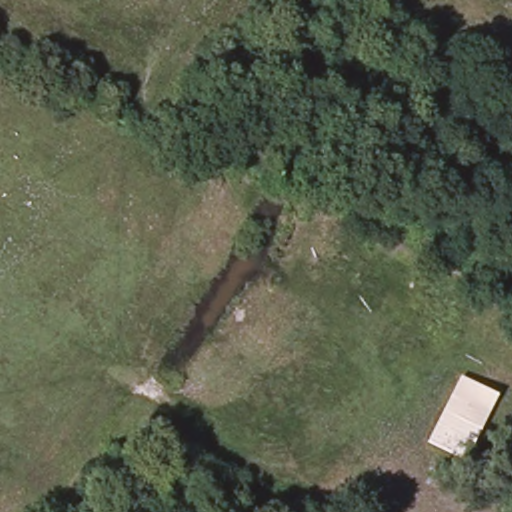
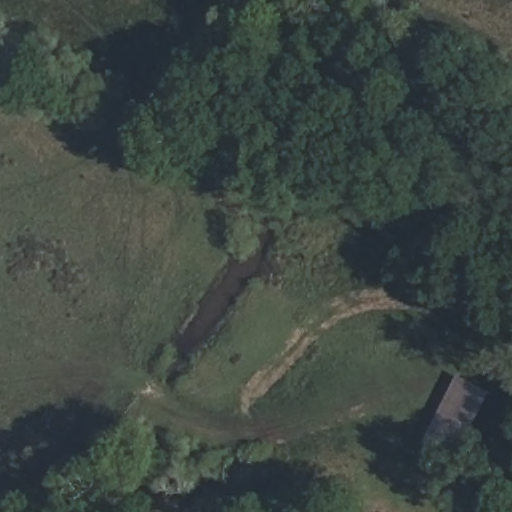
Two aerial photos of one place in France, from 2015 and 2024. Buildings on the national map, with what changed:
unchanged [(443,412),(460,377),(495,395),(477,430),(443,412)]
unchanged [(477,430),(458,464),(426,447),(443,412),(477,430)]

